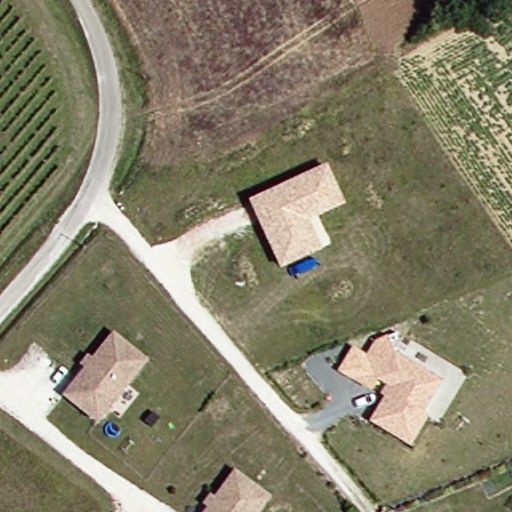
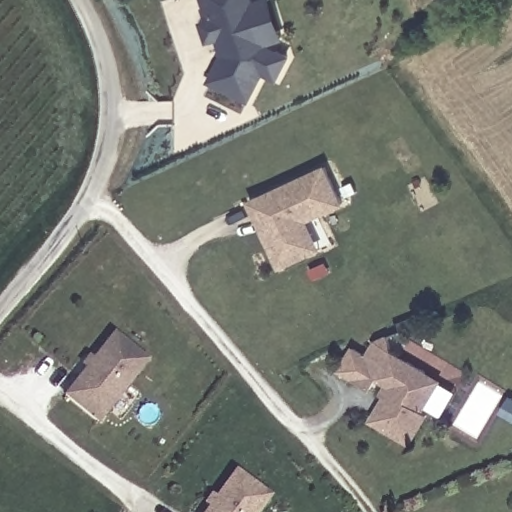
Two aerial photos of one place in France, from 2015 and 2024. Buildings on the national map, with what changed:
new [(285,59),(274,81),(260,74),(246,101),(209,82),(226,52),(224,46),(219,44),(218,38),(208,41),(203,24),(212,21),(211,16),(208,16),(204,0),(249,0),(263,49),(285,59)]
new [(267,0),(279,40),(263,45),(251,6),(267,0)]
unchanged [(347,206),(309,223),(322,251),(280,271),(248,202),(327,165),(347,206)]
unchanged [(63,393),(111,330),(145,355),(97,420),(63,393)]
unchanged [(367,423),(386,389),(369,381),(386,352),(435,381),(417,413),(421,417),(407,445),(367,423)]
unchanged [(233,468),(267,493),(255,512),(203,512),(233,468)]

